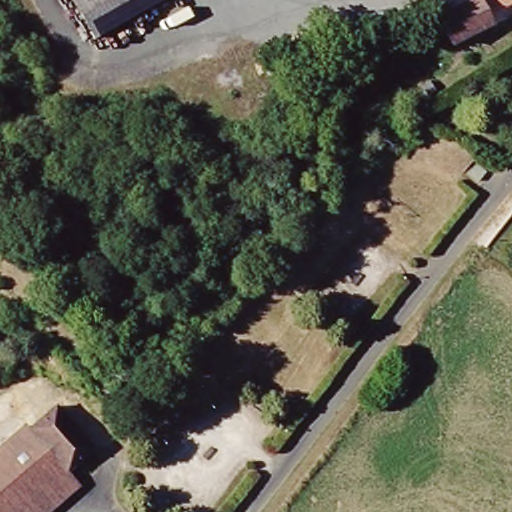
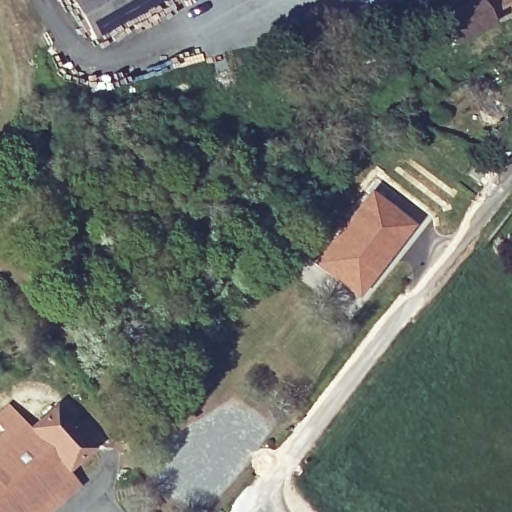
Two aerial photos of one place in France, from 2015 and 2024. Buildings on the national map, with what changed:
unchanged [(75,0),(76,0),(75,1),(75,0)]
unchanged [(75,1),(76,0),(168,0),(102,42),(75,1)]
unchanged [(458,6),(471,0),(479,0),(491,26),(449,47),(436,19),(458,6)]
new [(370,189),(416,224),(402,244),(356,299),(312,263),(370,189)]
unchanged [(70,477),(30,512),(12,512),(0,495),(0,453),(58,410),(89,450),(66,472),(70,477)]
unchanged [(70,477),(82,491),(56,512),(30,512),(70,477)]
unchanged [(0,495),(12,512),(0,512),(0,495)]

